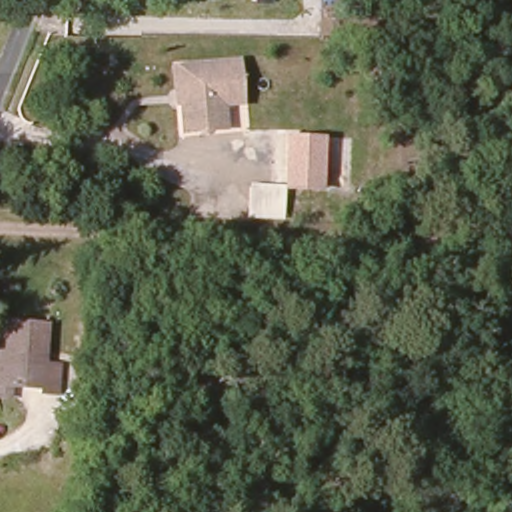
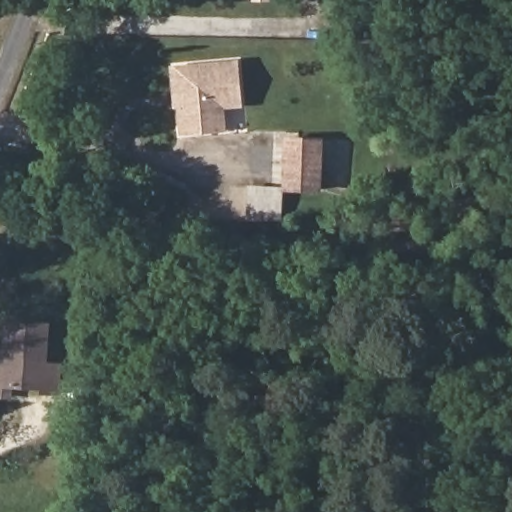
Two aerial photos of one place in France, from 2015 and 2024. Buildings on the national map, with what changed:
unchanged [(248,88),(248,107),(230,107),(231,132),(187,134),(184,105),(180,106),(179,67),(183,67),(247,63),(248,88)]
unchanged [(322,193),(283,192),(284,138),(324,138),(322,193)]
unchanged [(245,215),(248,185),(275,187),(274,217),(245,215)]
unchanged [(0,349),(10,350),(13,320),(54,324),(50,362),(65,364),(63,393),(49,392),(49,388),(15,385),(15,395),(0,393),(0,349)]

